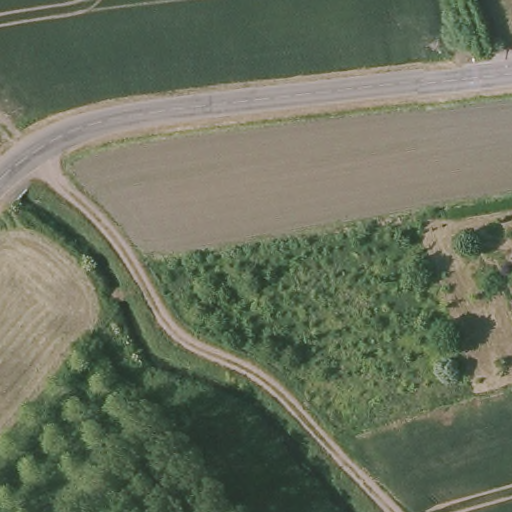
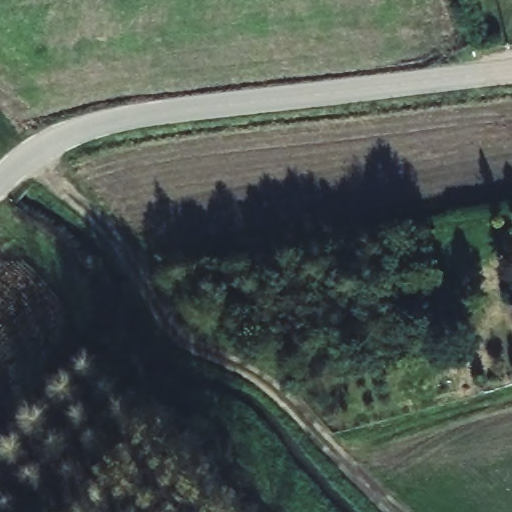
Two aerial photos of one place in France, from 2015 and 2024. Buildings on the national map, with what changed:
unchanged [(510,303),(512,303),(512,309),(510,303)]

